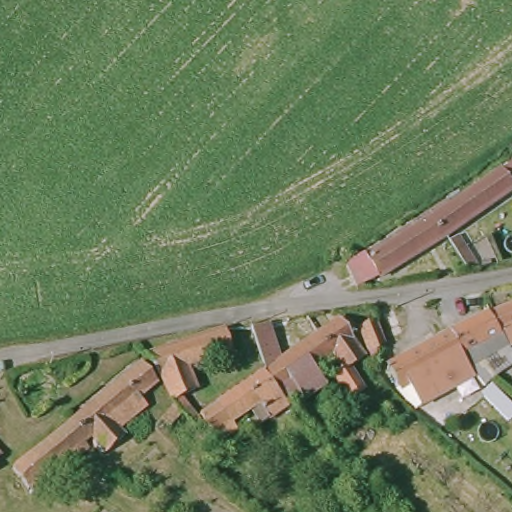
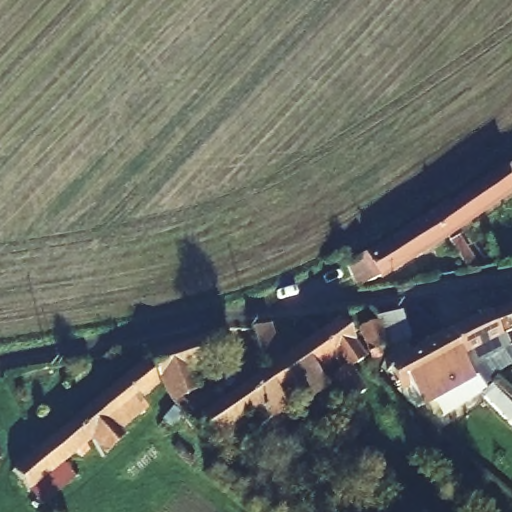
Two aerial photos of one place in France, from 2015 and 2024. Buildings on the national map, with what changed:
unchanged [(455,229),(439,204),(454,193),(457,198),(512,158),(512,186),(463,221),(489,261),(482,262),(477,263),(455,229)]
unchanged [(356,259),(439,204),(455,229),(392,269),(363,279),(356,259)]
unchanged [(512,339),(498,346),(484,312),(512,300),(512,339)]
unchanged [(445,303),(449,317),(440,320),(434,307),(445,303)]
unchanged [(392,312),(402,340),(392,344),(382,317),(392,312)]
unchanged [(465,320),(484,312),(498,346),(462,363),(444,331),(465,320)]
unchanged [(338,322),(352,342),(350,343),(362,360),(347,370),(342,362),(330,369),(327,363),(332,360),(331,359),(315,337),(338,322)]
unchanged [(375,328),(385,350),(380,353),(382,358),(372,361),(360,331),(374,325),(375,328)]
unchanged [(281,360),(315,337),(331,359),(332,360),(327,363),(315,371),(324,383),(289,408),(286,410),(268,383),(261,374),(265,371),(256,349),(248,329),(270,327),(281,360)]
unchanged [(222,331),(230,354),(185,371),(194,394),(177,400),(198,425),(192,432),(169,405),(167,400),(157,378),(155,379),(142,359),(222,331)]
unchanged [(402,382),(395,386),(384,365),(444,331),(462,363),(464,367),(470,377),(417,407),(409,392),(402,382)]
unchanged [(512,347),(512,356),(510,357),(500,352),(512,347)]
unchanged [(63,428),(140,365),(155,383),(135,401),(143,411),(117,435),(122,441),(100,460),(104,464),(97,469),(85,455),(63,428)]
unchanged [(335,383),(349,372),(355,381),(342,390),(335,383)]
unchanged [(268,383),(286,410),(260,428),(250,414),(230,427),(235,433),(226,440),(223,436),(215,440),(214,436),(212,438),(198,417),(261,374),(268,383)]
unchanged [(169,417),(205,446),(189,464),(153,436),(169,417)]
unchanged [(63,428),(85,455),(79,460),(74,464),(67,457),(20,496),(5,476),(63,428)]
unchanged [(205,473),(215,462),(223,469),(216,477),(214,479),(205,473)]

